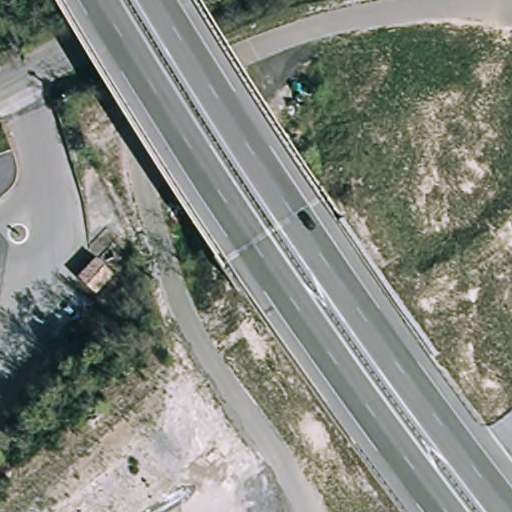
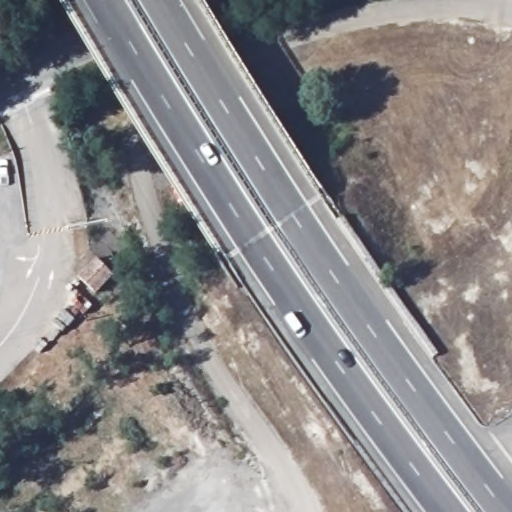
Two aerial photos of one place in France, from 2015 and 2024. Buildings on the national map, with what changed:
unchanged [(103,258),(122,277),(99,297),(80,277),(103,258)]

